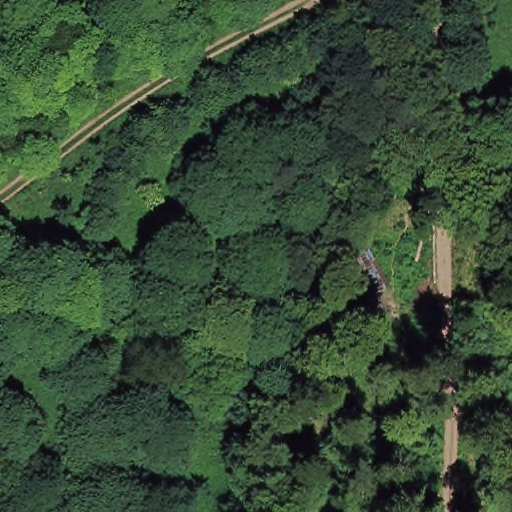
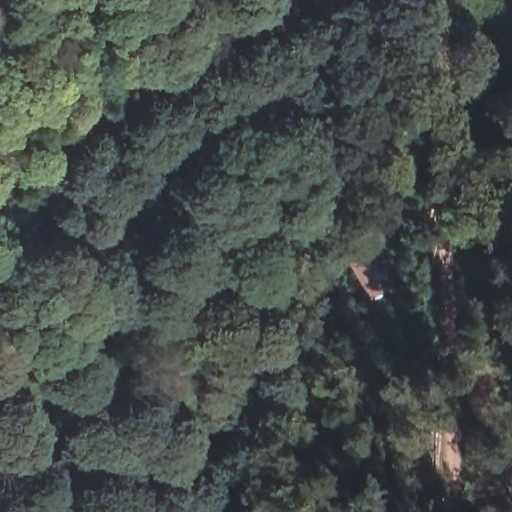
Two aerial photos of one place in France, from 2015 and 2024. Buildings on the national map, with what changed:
unchanged [(392,287),(370,301),(349,258),(371,246),(392,287)]

